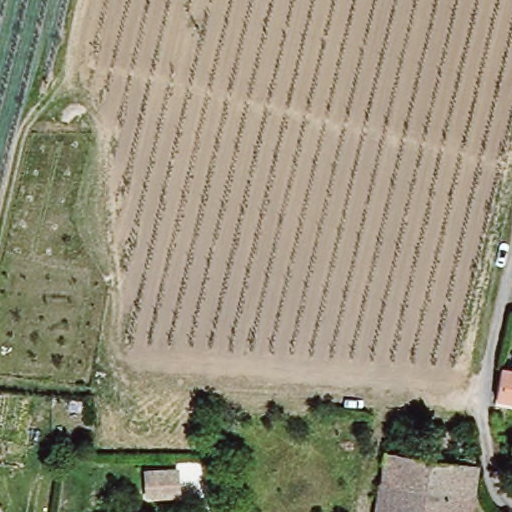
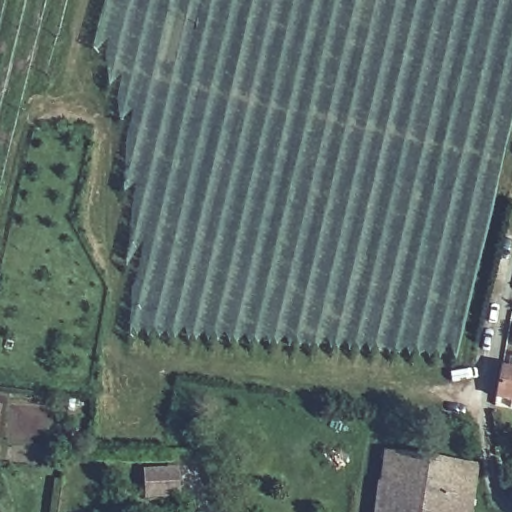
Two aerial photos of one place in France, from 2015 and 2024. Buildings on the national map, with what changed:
unchanged [(512,404),(497,401),(502,367),(512,369),(512,404)]
unchanged [(382,481),(387,453),(479,464),(475,492),(382,481)]
unchanged [(378,512),(382,481),(475,492),(472,512),(378,512)]

